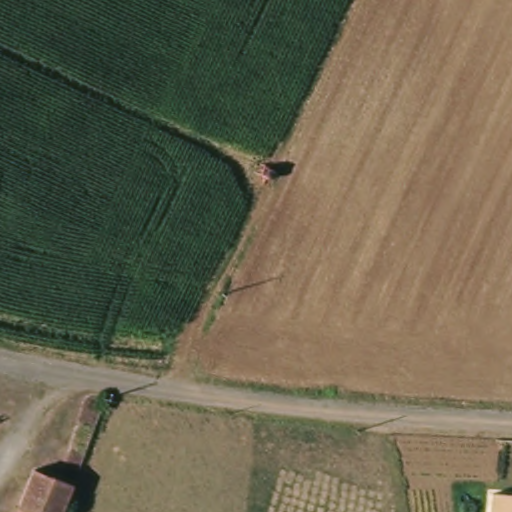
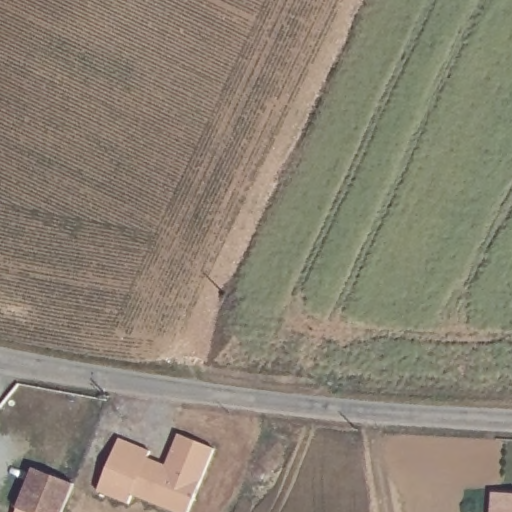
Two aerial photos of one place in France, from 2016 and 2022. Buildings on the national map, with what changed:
new [(119,439),(150,452),(146,461),(164,469),(178,435),(214,450),(188,512),(171,512),(131,495),(128,504),(97,491),(119,439)]
unchanged [(61,512),(18,512),(33,475),(70,490),(61,512)]
unchanged [(489,498),(512,500),(512,512),(488,512),(489,498)]

